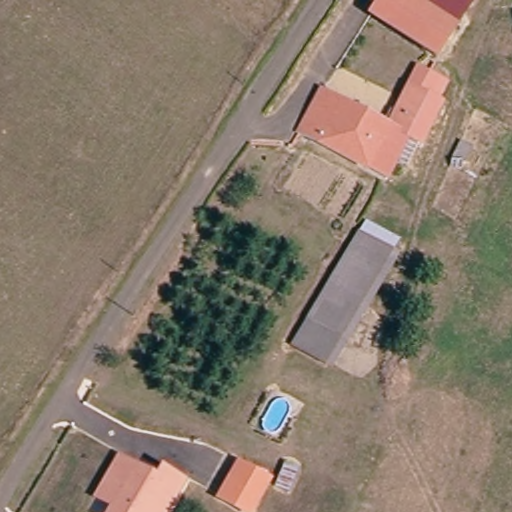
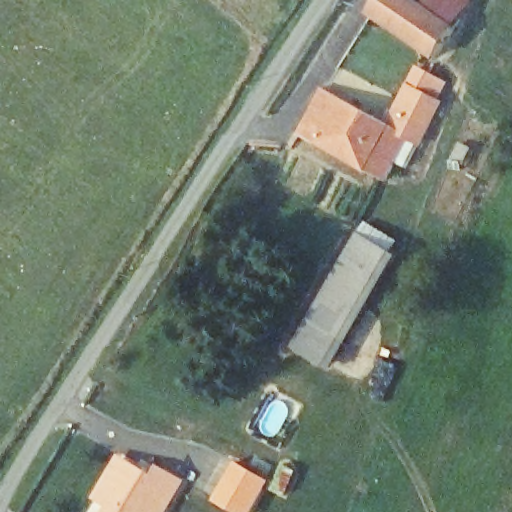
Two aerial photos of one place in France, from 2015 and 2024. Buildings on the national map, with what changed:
unchanged [(417,0),(429,9),(435,0),(440,0),(478,0),(465,18),(457,30),(437,58),(370,10),(377,0),(417,0)]
unchanged [(296,126),(322,84),(406,136),(381,179),(296,126)]
unchanged [(435,89),(444,95),(454,101),(425,147),(406,136),(435,89)]
unchanged [(295,347),(360,233),(370,220),(401,239),(392,252),(400,259),(333,372),(295,347)]
unchanged [(141,467),(138,473),(155,481),(164,462),(187,475),(169,512),(111,512),(115,503),(109,500),(99,495),(119,456),(139,465),(141,467)]
unchanged [(268,476),(255,512),(247,512),(224,503),(239,464),(268,476)]

